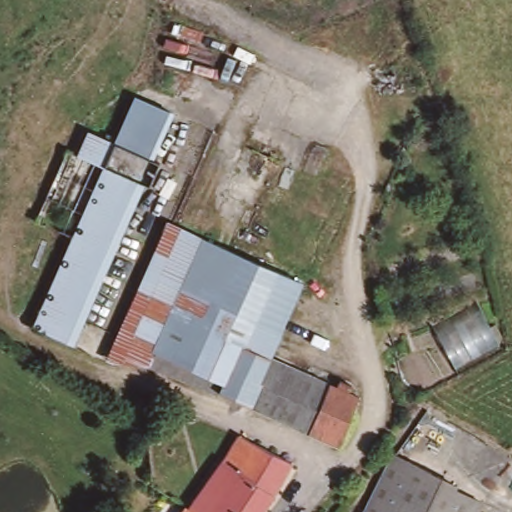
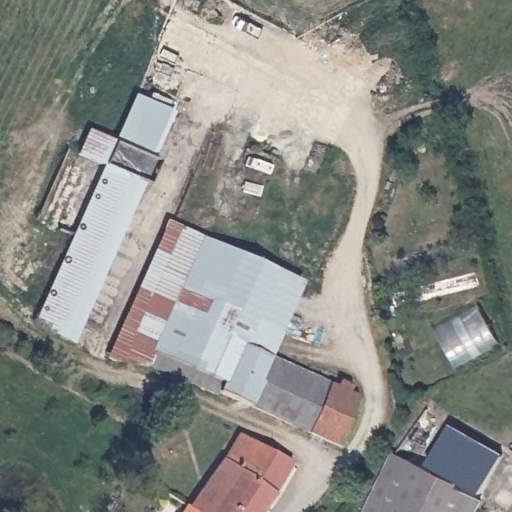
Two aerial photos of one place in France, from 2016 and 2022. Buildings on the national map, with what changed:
unchanged [(119,146),(143,101),(182,122),(156,168),(119,146)]
unchanged [(106,168),(78,152),(91,130),(119,146),(156,168),(160,171),(149,193),(144,190),(106,168)]
unchanged [(32,215),(70,147),(78,152),(106,168),(69,236),(32,215)]
unchanged [(106,168),(144,190),(61,342),(23,320),(69,236),(106,168)]
unchanged [(172,383),(138,368),(107,351),(101,348),(165,222),(170,225),(202,243),(275,283),(241,352),(320,392),(298,442),(207,399),(207,400),(189,391),(172,383)]
unchanged [(355,409),(332,457),(298,442),(320,392),(355,409)]
unchanged [(212,512),(192,499),(240,423),(296,453),(258,512),(212,512)]
new [(426,466),(450,425),(502,454),(479,495),(426,466)]
unchanged [(390,458),(459,492),(456,498),(475,510),(474,512),(364,512),(390,458)]
unchanged [(186,495),(192,499),(212,512),(175,512),(186,495)]

